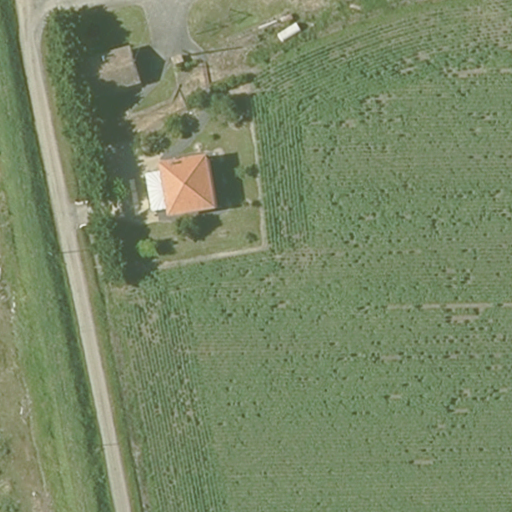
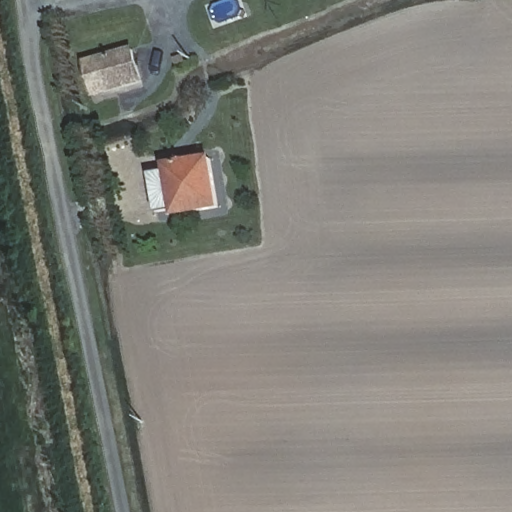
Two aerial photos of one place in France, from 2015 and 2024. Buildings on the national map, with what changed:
unchanged [(135,48),(147,84),(93,99),(84,62),(135,48)]
unchanged [(210,163),(218,217),(170,222),(162,169),(210,163)]

